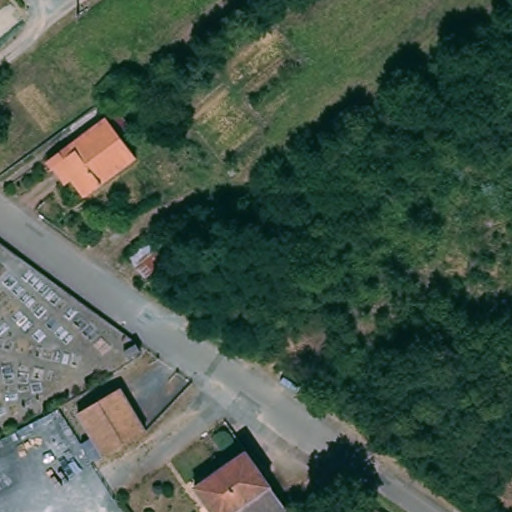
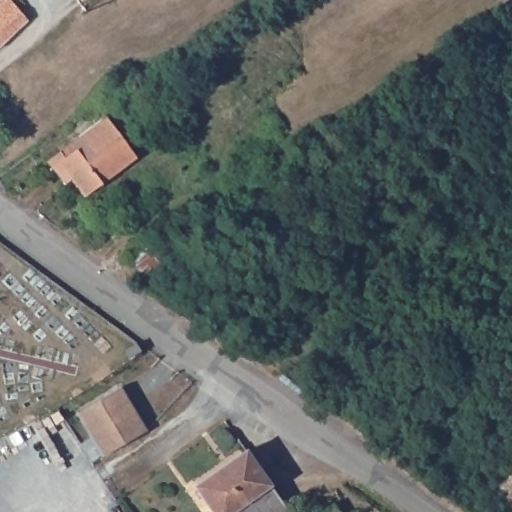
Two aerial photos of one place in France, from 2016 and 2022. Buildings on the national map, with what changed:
new [(29,23),(0,48),(0,0),(9,0),(29,23)]
unchanged [(45,166),(52,160),(114,110),(130,132),(120,140),(135,162),(84,202),(71,185),(62,191),(45,166)]
unchanged [(146,242),(157,260),(137,275),(125,256),(146,242)]
unchanged [(75,421),(118,391),(146,434),(104,462),(75,421)]
unchanged [(285,512),(220,512),(196,479),(245,443),(292,507),(285,512)]

